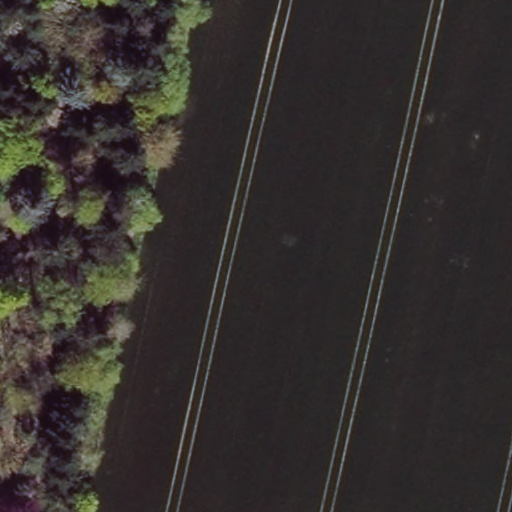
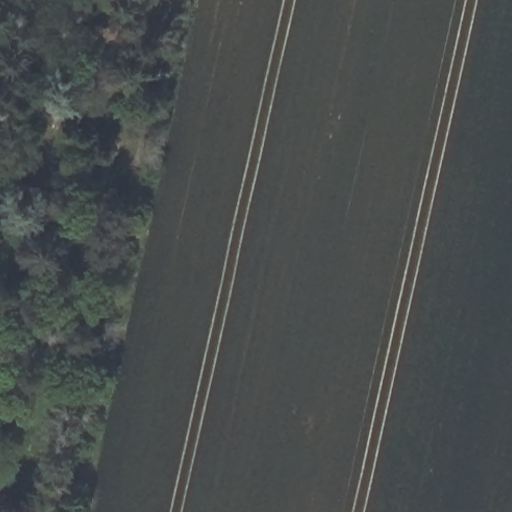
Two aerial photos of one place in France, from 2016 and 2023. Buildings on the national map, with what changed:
[]

